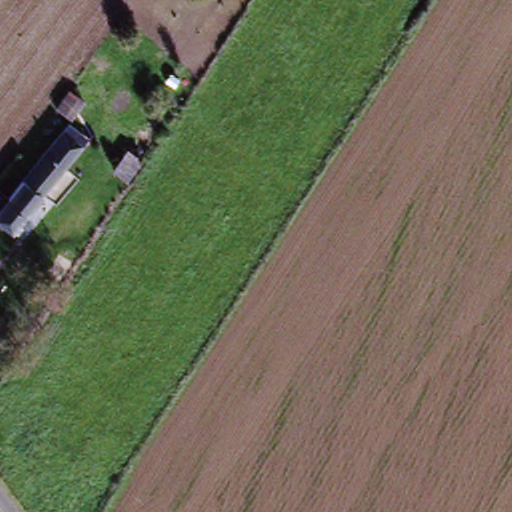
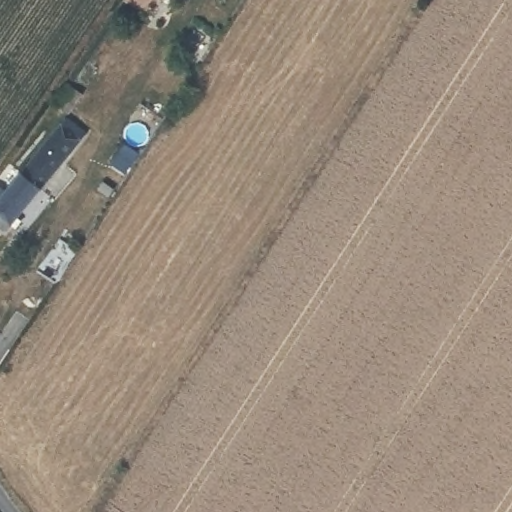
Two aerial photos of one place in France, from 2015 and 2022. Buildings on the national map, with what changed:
unchanged [(7,192),(62,113),(74,118),(67,126),(80,133),(15,230),(0,221),(0,188),(7,192)]

